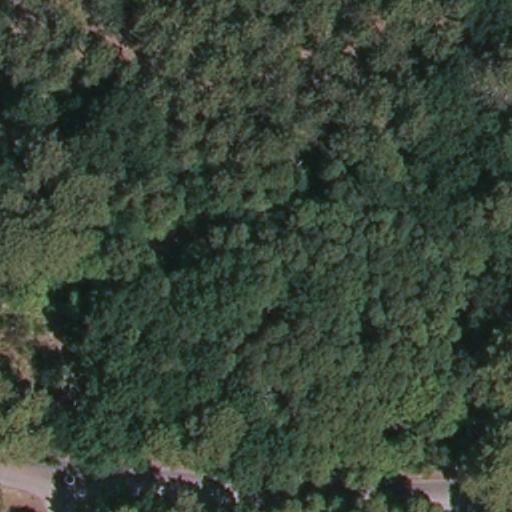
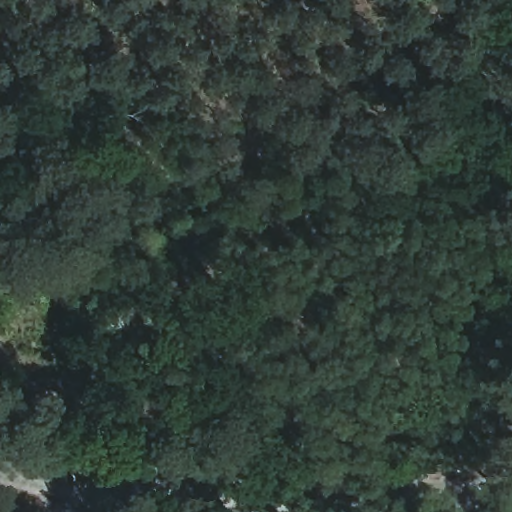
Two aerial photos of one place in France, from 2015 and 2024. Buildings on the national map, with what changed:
unchanged [(19,327),(17,338),(38,342),(31,375),(0,369),(0,337),(2,324),(19,327)]

